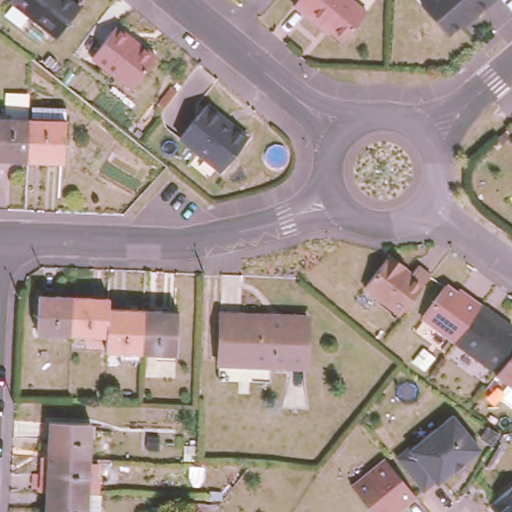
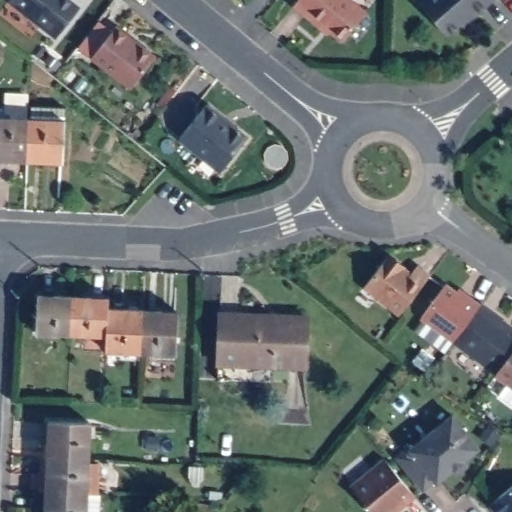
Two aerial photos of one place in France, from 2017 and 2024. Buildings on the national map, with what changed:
unchanged [(78,9),(55,39),(8,2),(9,0),(66,0),(78,9)]
unchanged [(361,13),(336,42),(316,25),(314,27),(288,6),(293,0),(345,0),(361,13)]
unchanged [(459,25),(446,36),(419,6),(426,0),(492,0),(470,19),(462,27),(459,25)]
unchanged [(116,29),(155,58),(125,89),(88,60),(116,29)]
unchanged [(58,104),(56,160),(22,158),(24,113),(24,102),(58,104)]
unchanged [(205,107),(246,139),(221,172),(179,140),(205,107)]
unchanged [(0,112),(24,113),(22,158),(0,157),(0,112)]
unchanged [(391,254),(411,272),(417,268),(429,278),(397,317),(361,290),(391,254)]
unchanged [(448,284),(481,306),(479,309),(512,332),(512,390),(491,375),(493,372),(416,322),(448,284)]
unchanged [(31,329),(34,290),(69,292),(67,330),(31,329)]
unchanged [(67,330),(69,292),(103,295),(103,307),(102,332),(67,330)]
unchanged [(133,308),(133,346),(101,344),(102,332),(103,307),(133,308)]
unchanged [(216,307),(306,312),(303,362),(213,358),(216,307)]
unchanged [(168,310),(166,347),(133,346),(133,308),(168,310)]
unchanged [(409,449),(453,415),(479,449),(435,484),(421,493),(394,459),(409,449)]
unchanged [(47,419),(89,422),(88,457),(46,455),(47,419)]
unchanged [(40,455),(46,455),(88,457),(85,493),(44,492),(39,491),(40,455)]
unchanged [(397,512),(372,512),(346,486),(382,458),(413,500),(397,512)]
unchanged [(492,512),(487,505),(512,488),(512,512),(492,512)]
unchanged [(43,512),(44,492),(85,493),(98,494),(97,512),(43,512)]

